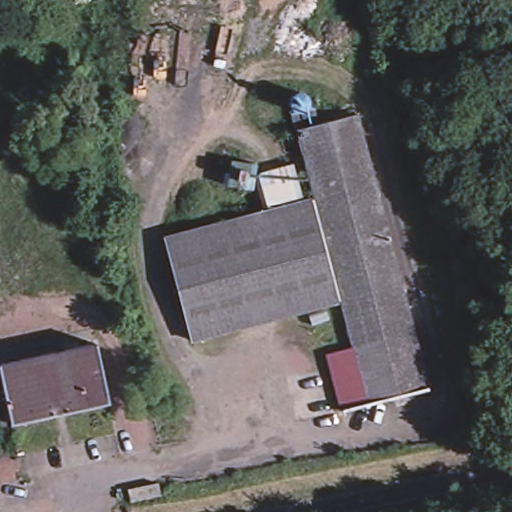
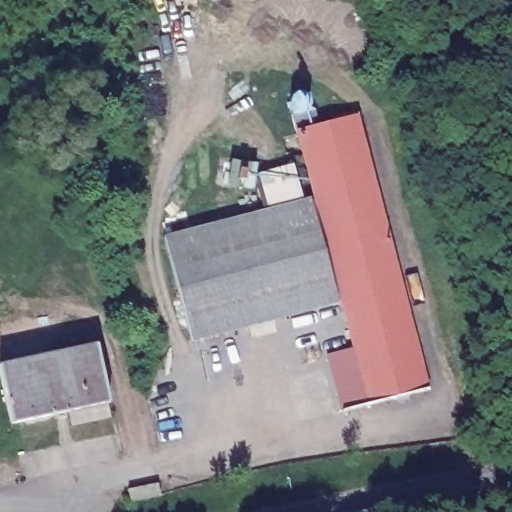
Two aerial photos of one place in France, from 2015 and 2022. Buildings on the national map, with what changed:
unchanged [(317,199),(298,129),(357,113),(430,390),(343,411),(329,355),(355,347),(343,301),(317,199)]
unchanged [(190,341),(164,241),(317,199),(343,301),(190,341)]
unchanged [(0,363),(96,342),(108,400),(10,423),(0,373),(0,363)]

